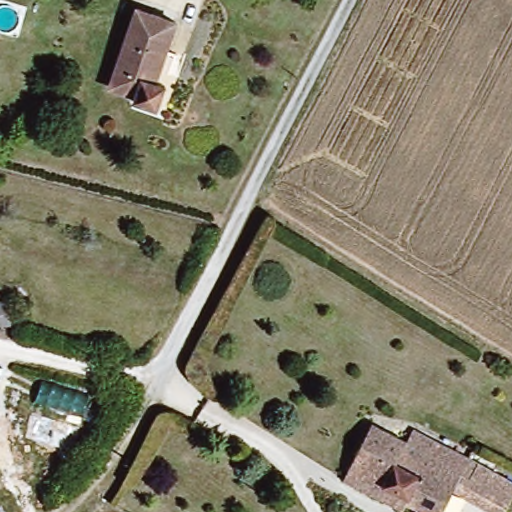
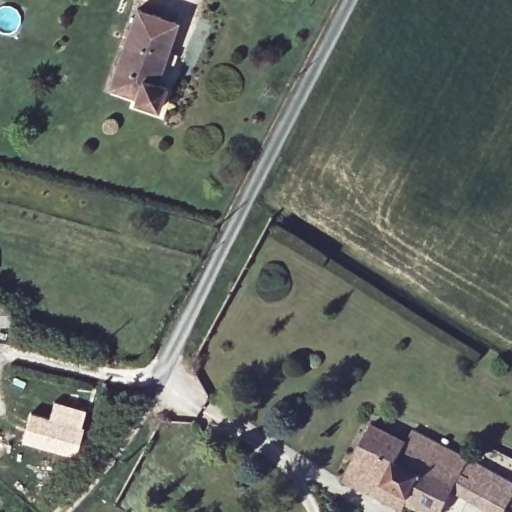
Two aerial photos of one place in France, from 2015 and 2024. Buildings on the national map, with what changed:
unchanged [(173,20),(154,80),(165,82),(156,110),(132,103),(135,97),(111,90),(137,9),(173,20)]
unchanged [(32,321),(10,326),(5,303),(28,298),(32,321)]
new [(30,410),(47,415),(53,399),(87,409),(75,455),(20,440),(30,410)]
unchanged [(375,420),(413,440),(420,428),(485,461),(475,482),(464,477),(456,495),(448,512),(444,512),(411,496),(403,512),(402,512),(362,492),(343,483),(375,420)]
unchanged [(475,482),(485,461),(512,478),(512,506),(509,512),(489,512),(456,495),(464,477),(475,482)]

